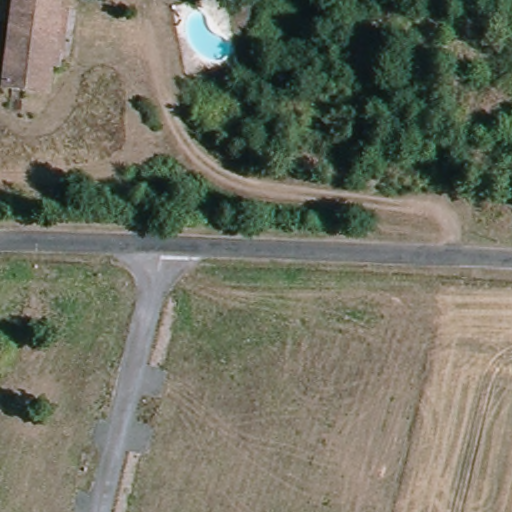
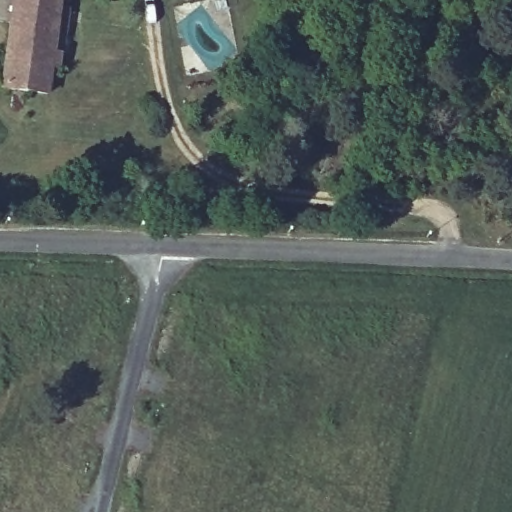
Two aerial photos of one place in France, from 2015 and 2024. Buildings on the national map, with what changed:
unchanged [(55,30),(49,29),(46,52),(51,53),(50,64),(44,62),(40,93),(0,87),(0,29),(4,0),(51,0),(50,9),(58,10),(55,30)]

